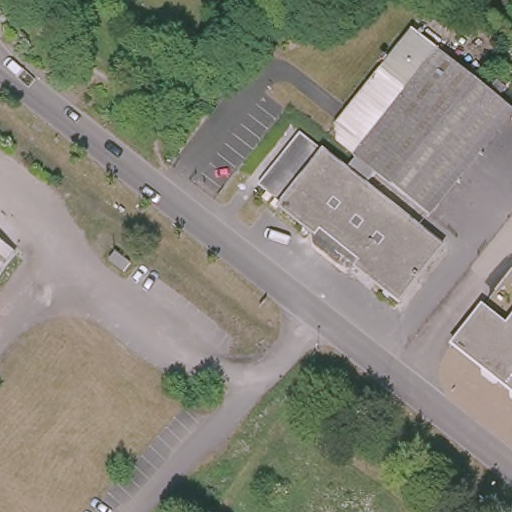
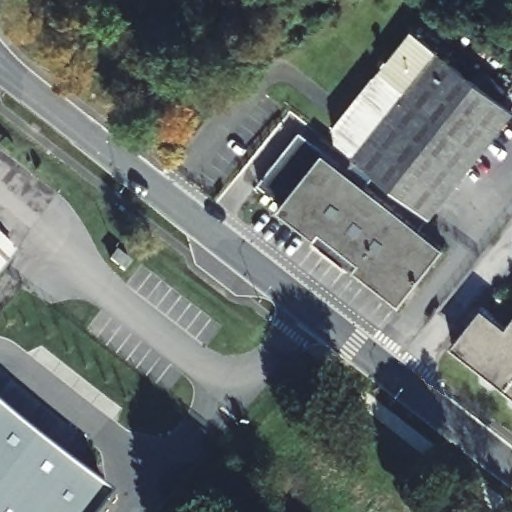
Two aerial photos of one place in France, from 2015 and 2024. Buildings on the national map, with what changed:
unchanged [(359,262),(321,232),(316,239),(279,210),(283,206),(260,188),(301,137),(347,173),(356,162),(336,146),(335,129),(412,30),(489,91),(497,80),(507,88),(499,99),(512,110),(512,113),(428,220),(375,178),(366,189),(444,250),(417,283),(399,304),(392,298),(354,269),(359,262)]
unchanged [(15,257),(0,276),(0,245),(15,257)]
unchanged [(131,266),(124,274),(111,263),(116,255),(131,266)]
unchanged [(458,341),(488,303),(509,320),(483,362),(458,341)]
unchanged [(484,362),(509,321),(512,317),(512,392),(481,366),(484,362)]
new [(109,495),(96,512),(0,512),(0,410),(109,495)]

